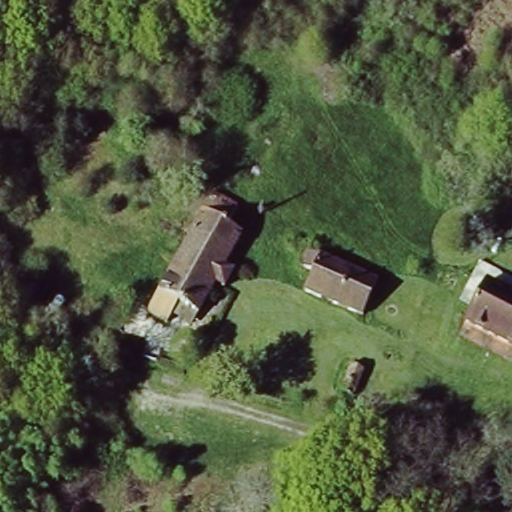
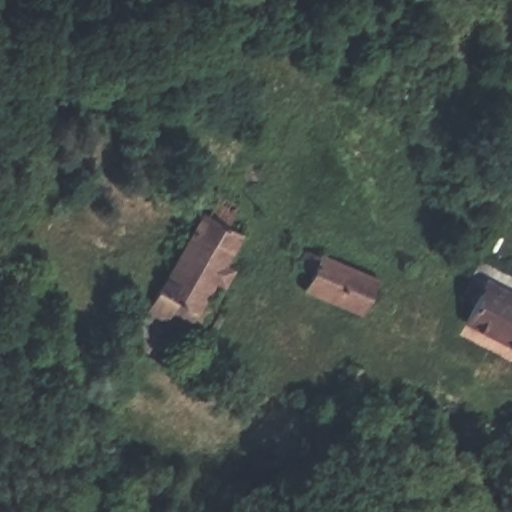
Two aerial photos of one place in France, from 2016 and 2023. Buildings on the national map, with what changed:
unchanged [(167,318),(146,309),(156,286),(203,209),(212,185),(239,200),(235,212),(232,221),(246,230),(200,314),(198,318),(178,309),(175,311),(167,318)]
unchanged [(363,314),(302,290),(317,257),(320,249),(380,273),(375,286),(374,288),(363,314)]
unchanged [(53,278),(32,307),(5,297),(25,254),(53,278)]
unchanged [(461,318),(475,293),(477,289),(487,273),(512,286),(512,347),(461,318)]
unchanged [(371,370),(387,378),(373,417),(352,411),(371,370)]

